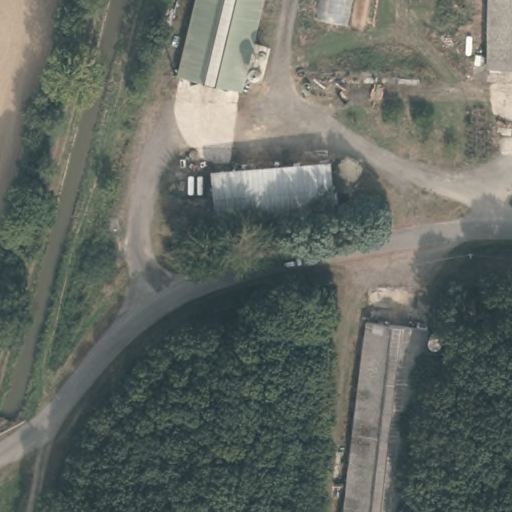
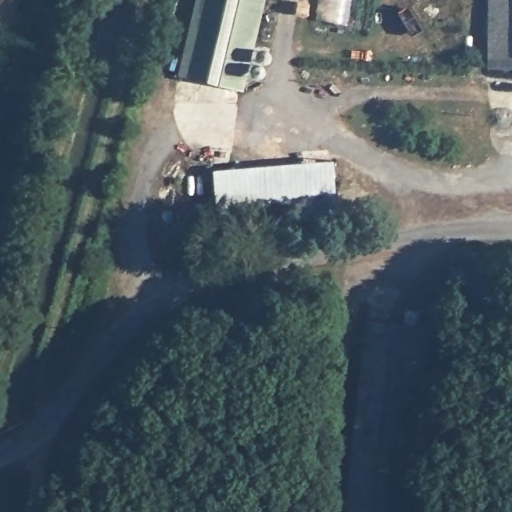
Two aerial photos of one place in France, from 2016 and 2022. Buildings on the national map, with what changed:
unchanged [(178,77),(196,0),(264,0),(242,92),(178,77)]
unchanged [(489,69),(490,0),(512,0),(512,68),(489,69)]
unchanged [(325,159),(332,159),(333,170),(336,209),(248,217),(217,220),(212,169),(217,168),(325,159)]
unchanged [(366,322),(428,331),(406,512),(344,512),(366,322)]

